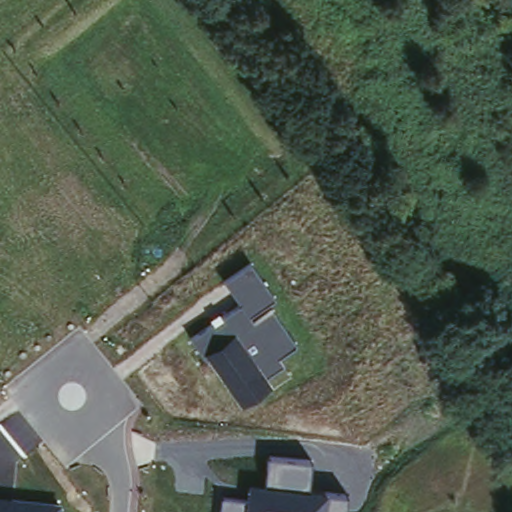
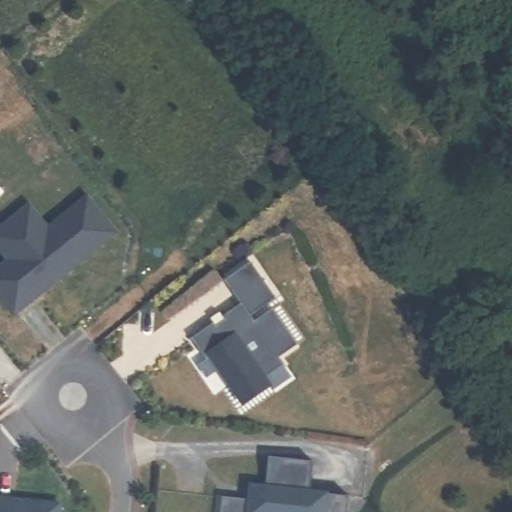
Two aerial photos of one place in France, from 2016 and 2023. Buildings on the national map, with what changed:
new [(13,316),(0,300),(0,266),(8,260),(0,251),(0,227),(3,225),(28,205),(47,227),(86,196),(116,232),(67,272),(38,296),(13,316)]
unchanged [(275,297),(250,315),(253,320),(271,308),(297,345),(278,357),(284,365),(266,377),(274,388),(243,408),(205,356),(204,357),(190,338),(212,322),(209,318),(219,312),(222,316),(240,302),(222,279),(250,261),(275,297)]
unchanged [(311,460),(309,488),(328,491),(328,493),(346,494),(344,512),(214,512),(214,509),(222,496),(246,497),(248,481),(265,482),(267,456),(311,460)]
unchanged [(62,500),(60,512),(0,512),(0,494),(62,500)]

